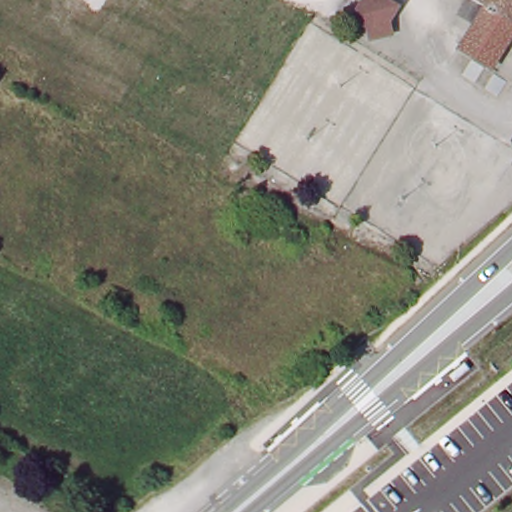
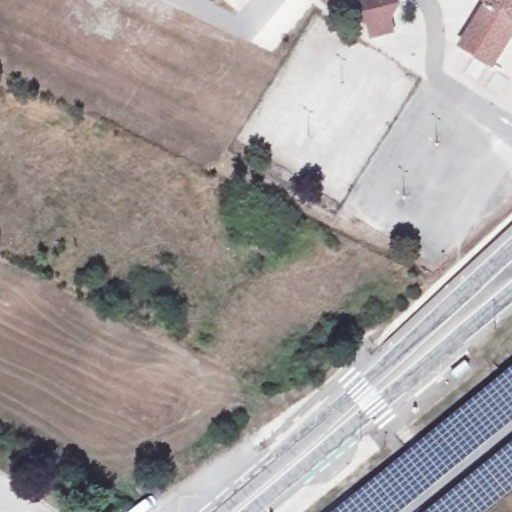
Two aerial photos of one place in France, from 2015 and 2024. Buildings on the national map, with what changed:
unchanged [(373,40),(371,28),(355,17),(367,0),(388,0),(401,9),(391,24),(393,36),(373,40)]
unchanged [(495,68),(463,47),(489,6),(480,0),(512,0),(512,40),(495,68)]
new [(399,512),(335,512),(512,370),(512,420),(399,512)]
new [(483,512),(433,512),(512,447),(512,488),(483,512)]

